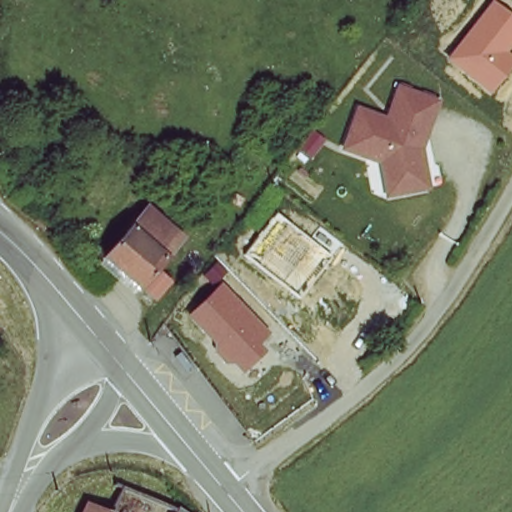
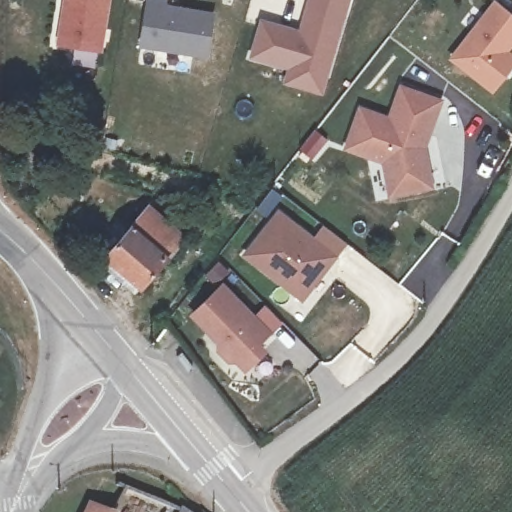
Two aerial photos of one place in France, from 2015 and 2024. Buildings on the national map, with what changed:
new [(63,0),(110,0),(102,51),(56,45),(63,0)]
new [(207,58),(130,44),(137,0),(168,0),(216,9),(207,58)]
new [(307,0),(352,0),(321,97),(287,88),(292,70),(249,59),(258,19),(300,28),(307,0)]
unchanged [(512,54),(512,67),(492,94),(447,60),(493,0),(495,0),(512,14),(512,48),(509,52),(512,54)]
unchanged [(387,116),(400,84),(442,101),(425,148),(432,191),(387,198),(382,166),(342,151),(360,106),(387,116)]
unchanged [(164,263),(179,280),(156,303),(103,252),(152,200),(189,232),(164,263)]
unchanged [(247,255),(278,214),(333,257),(302,297),(247,255)]
unchanged [(271,333),(260,344),(267,351),(243,372),(236,364),(226,363),(216,352),(217,344),(188,315),(223,282),(271,333)]
unchanged [(89,503),(110,512),(84,512),(89,503)]
unchanged [(182,512),(180,512),(180,511),(182,512)]

